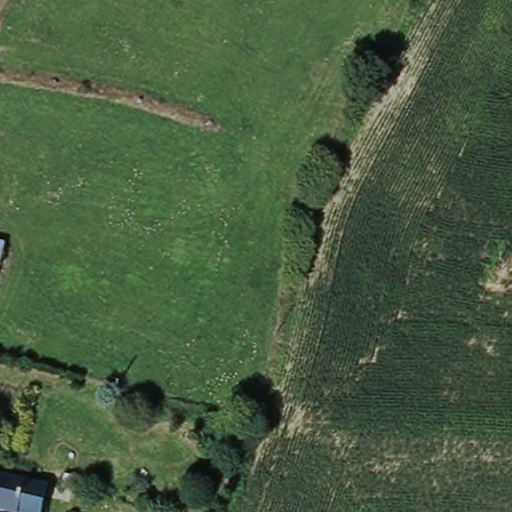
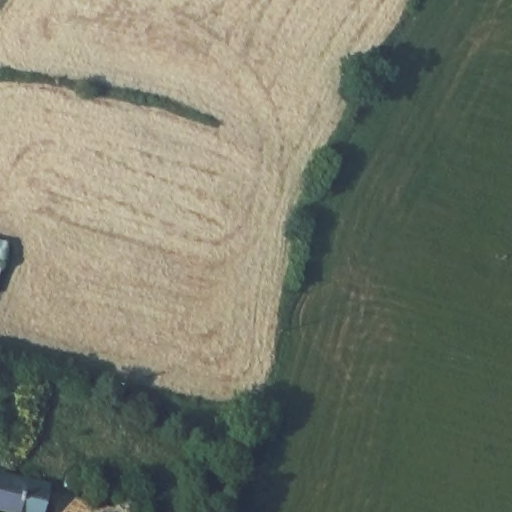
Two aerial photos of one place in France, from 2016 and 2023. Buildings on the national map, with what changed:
unchanged [(0,260),(0,242),(5,244),(0,260)]
unchanged [(45,512),(27,512),(0,507),(0,469),(51,478),(45,512)]

